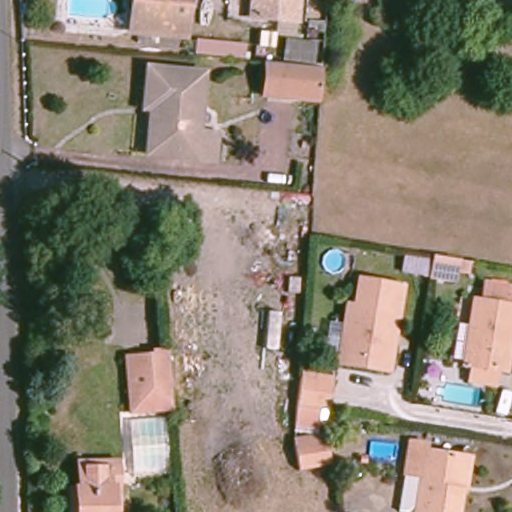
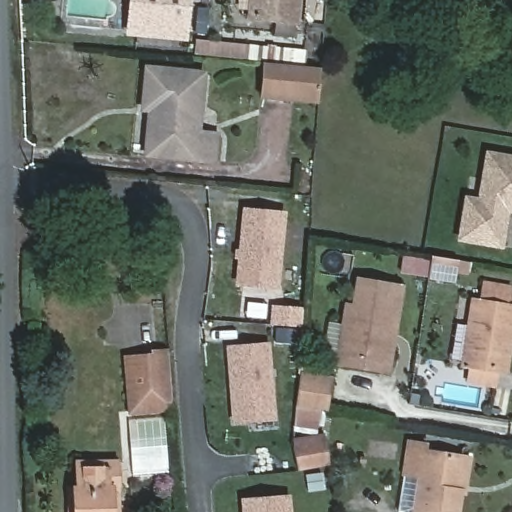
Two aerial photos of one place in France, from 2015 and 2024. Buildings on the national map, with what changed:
unchanged [(129,33),(129,31),(131,4),(131,0),(186,0),(183,38),(129,33)]
unchanged [(247,23),(249,0),(302,0),(299,26),(247,23)]
unchanged [(316,101),(262,98),(266,63),(318,68),(317,84),(316,101)]
unchanged [(203,74),(199,132),(216,134),(214,160),(146,154),(149,110),(142,109),(146,69),(203,74)]
new [(469,197),(482,199),(490,151),(512,155),(512,208),(510,208),(503,244),(462,237),(469,197)]
new [(247,208),(286,211),(280,284),(240,282),(247,208)]
unchanged [(147,235),(115,230),(115,219),(148,222),(147,235)]
unchanged [(400,275),(402,255),(431,260),(431,255),(471,262),(468,277),(456,275),(455,283),(400,275)]
unchanged [(337,364),(338,356),(339,349),(327,348),(330,324),(342,325),(346,304),(353,306),(358,280),(404,288),(400,314),(389,372),(337,364)]
unchanged [(475,376),(477,362),(468,360),(478,297),(512,302),(512,355),(510,368),(503,366),(500,366),(498,379),(475,376)]
new [(267,345),(273,419),(235,422),(229,348),(267,345)]
unchanged [(130,402),(129,359),(169,356),(170,369),(172,406),(158,407),(130,409),(130,402)]
unchanged [(298,406),(301,374),(332,377),(328,410),(298,406)]
unchanged [(298,413),(320,416),(317,432),(296,429),(298,413)]
unchanged [(294,443),(323,439),(327,466),(298,471),(294,443)]
unchanged [(398,511),(410,444),(425,446),(425,451),(462,458),(471,459),(465,494),(460,494),(457,512),(408,512),(398,511)]
unchanged [(69,488),(75,488),(78,488),(77,464),(107,463),(116,463),(117,512),(69,512),(69,488)]
new [(289,494),(290,512),(245,512),(245,499),(289,494)]

